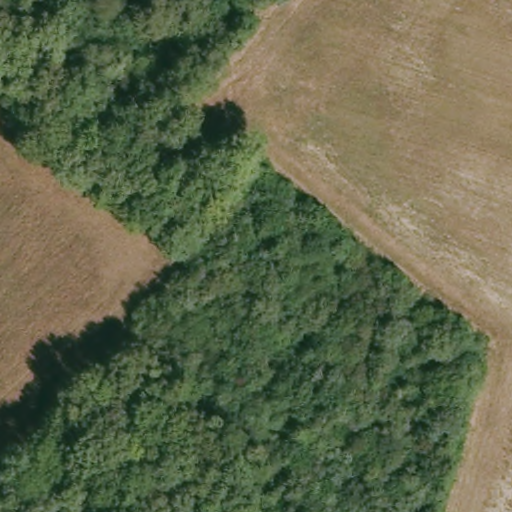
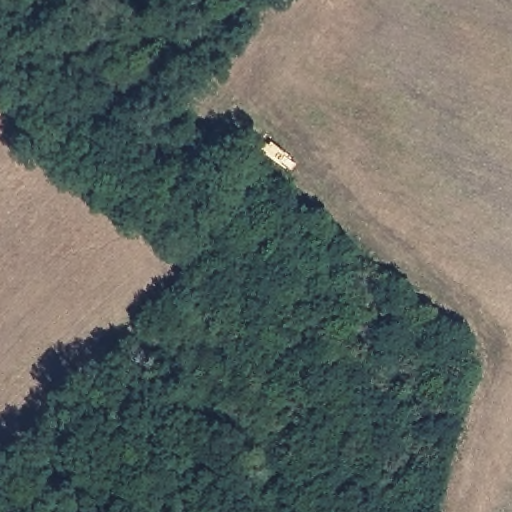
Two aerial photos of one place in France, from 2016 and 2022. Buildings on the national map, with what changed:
[]

